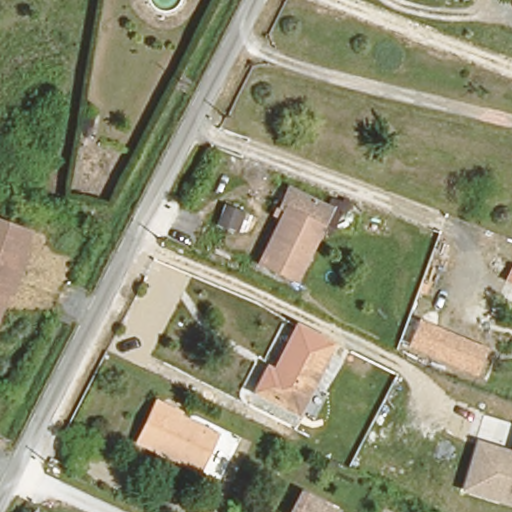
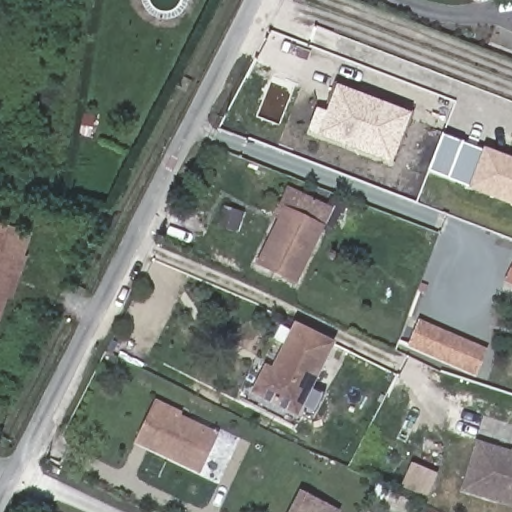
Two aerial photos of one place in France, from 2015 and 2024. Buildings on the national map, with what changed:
new [(391,164),(315,136),(335,85),(412,114),(391,164)]
new [(483,147),(512,158),(512,206),(427,174),(442,135),(482,151),(483,147)]
unchanged [(334,207),(295,286),(254,264),(275,220),(268,216),(286,185),(334,207)]
unchanged [(5,292),(0,308),(0,226),(22,232),(17,252),(31,255),(19,296),(5,292)]
new [(512,266),(512,287),(503,285),(510,265),(512,266)]
unchanged [(477,376),(407,346),(418,319),(489,348),(477,376)]
unchanged [(312,425),(293,414),(249,392),(262,365),(269,368),(290,322),(329,341),(305,388),(326,398),(312,425)]
unchanged [(206,434),(191,466),(137,441),(153,408),(206,434)]
unchanged [(494,450),(492,460),(510,464),(512,455),(512,498),(500,495),(498,502),(464,490),(475,445),(494,450)]
unchanged [(331,510),(330,512),(288,512),(296,494),(331,510)]

